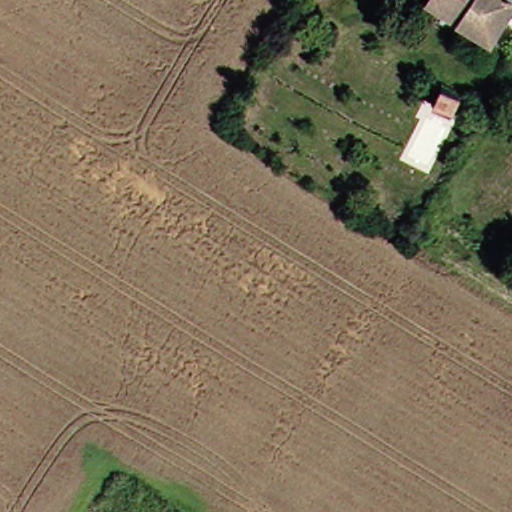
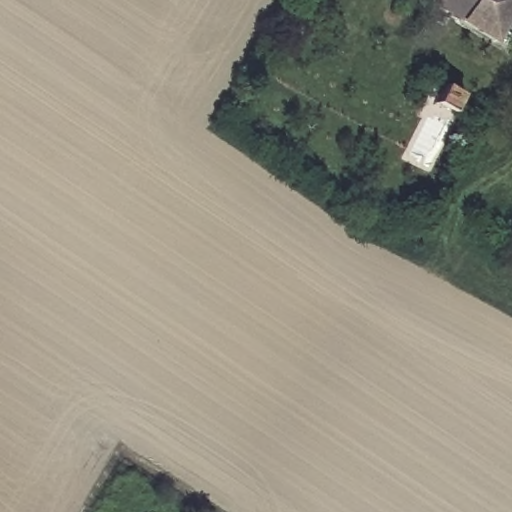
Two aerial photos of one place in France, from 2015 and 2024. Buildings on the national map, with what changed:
unchanged [(512,10),(494,38),(436,0),(512,0),(512,10)]
unchanged [(462,97),(450,112),(434,102),(443,86),(460,95),(462,97)]

